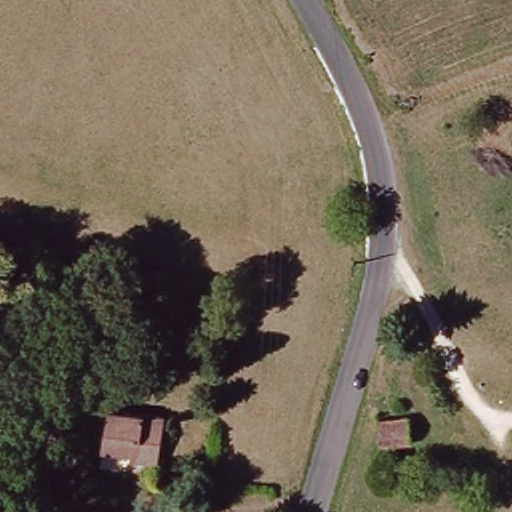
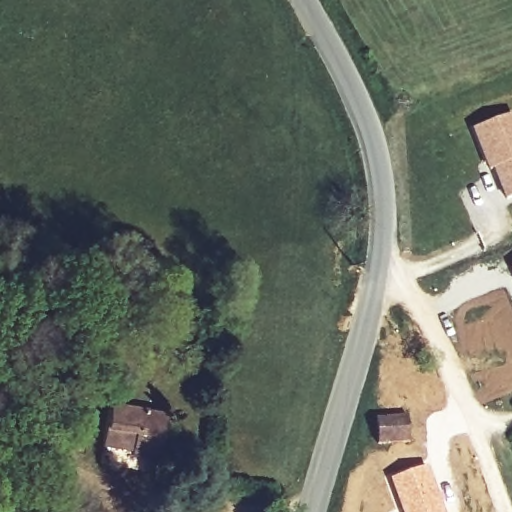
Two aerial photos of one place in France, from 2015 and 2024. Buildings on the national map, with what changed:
new [(512,115),(512,199),(505,201),(494,169),(489,171),(473,129),(512,115)]
new [(512,266),(512,271),(510,267),(512,266)]
unchanged [(102,445),(108,405),(161,413),(154,457),(130,454),(131,450),(102,445)]
unchanged [(376,418),(405,411),(411,435),(382,443),(376,418)]
new [(445,512),(393,512),(400,509),(389,479),(425,465),(445,512)]

